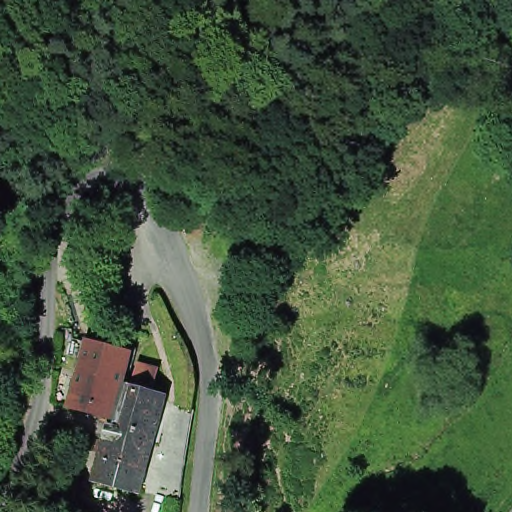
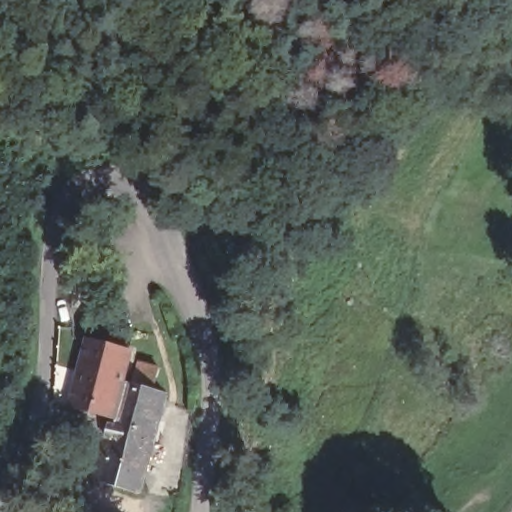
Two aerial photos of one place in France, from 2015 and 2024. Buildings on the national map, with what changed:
unchanged [(191,197),(171,190),(178,172),(196,180),(191,197)]
unchanged [(145,368),(165,374),(158,396),(171,400),(147,498),(103,486),(120,421),(78,407),(83,389),(94,343),(138,355),(131,388),(139,390),(145,368)]

